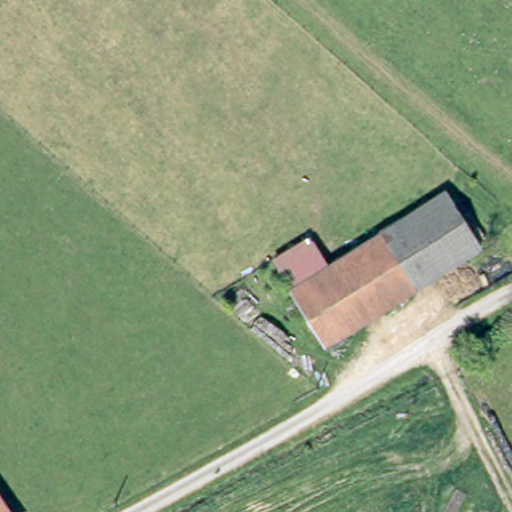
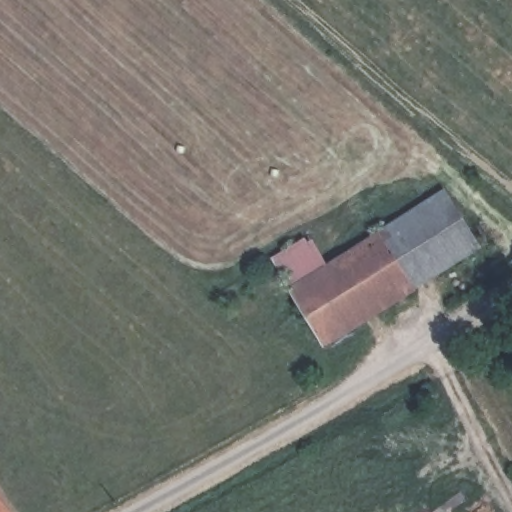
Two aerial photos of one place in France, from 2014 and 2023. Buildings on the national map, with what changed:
unchanged [(447,188),(479,245),(322,338),(290,281),(327,259),(447,188)]
unchanged [(274,252),(310,230),(327,259),(290,281),(274,252)]
unchanged [(0,502),(7,512),(0,512),(0,502)]

